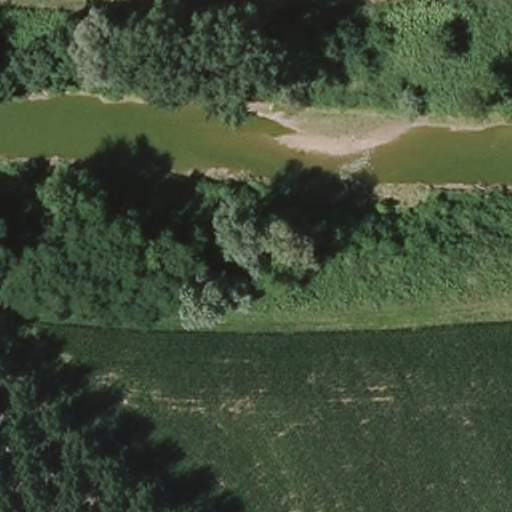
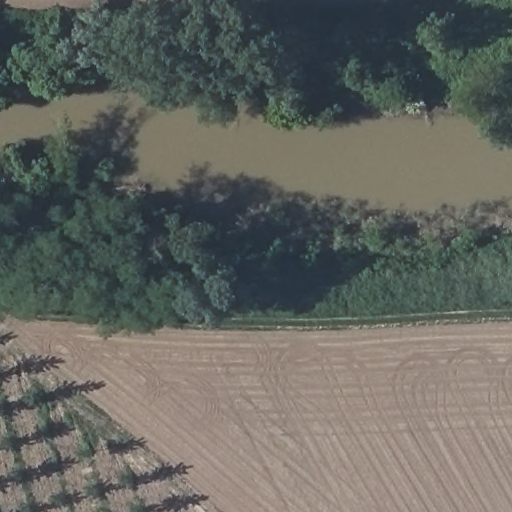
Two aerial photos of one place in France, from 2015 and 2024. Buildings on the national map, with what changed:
[]

